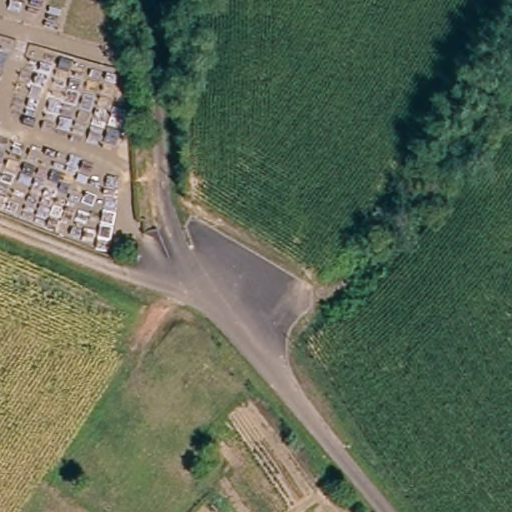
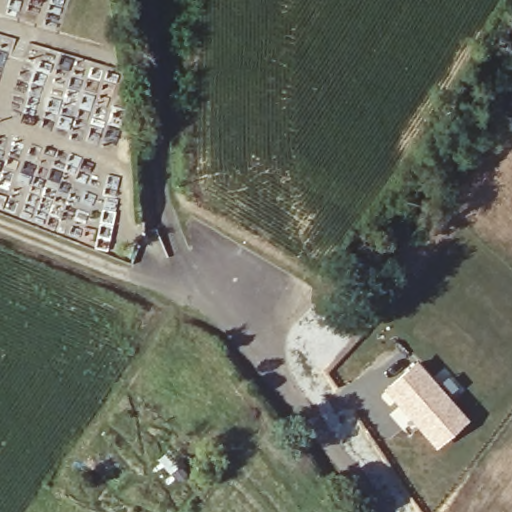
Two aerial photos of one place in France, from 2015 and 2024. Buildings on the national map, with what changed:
demolished [(157,305),(149,320),(130,314),(136,297),(157,305)]
new [(415,359),(438,384),(448,374),(459,386),(449,396),(470,419),(436,449),(411,423),(403,430),(388,414),(396,407),(380,389),(415,359)]

